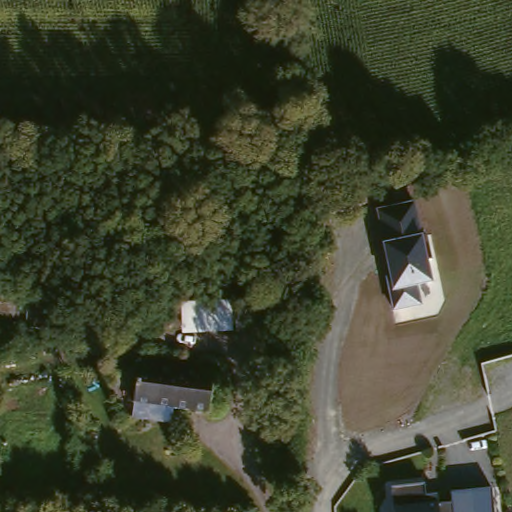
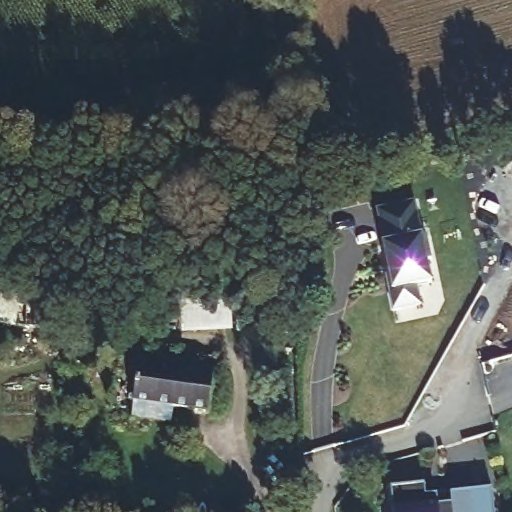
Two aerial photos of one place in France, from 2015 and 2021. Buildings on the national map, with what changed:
unchanged [(418,287),(422,307),(392,311),(385,278),(388,276),(382,244),(384,243),(377,212),(415,204),(422,238),(428,236),(433,259),(427,261),(432,284),(418,287)]
unchanged [(137,428),(138,411),(141,359),(216,362),(214,413),(175,412),(175,430),(137,428)]
unchanged [(426,487),(429,494),(441,496),(440,505),(453,505),(452,496),(493,492),(496,512),(396,512),(390,489),(426,487)]

